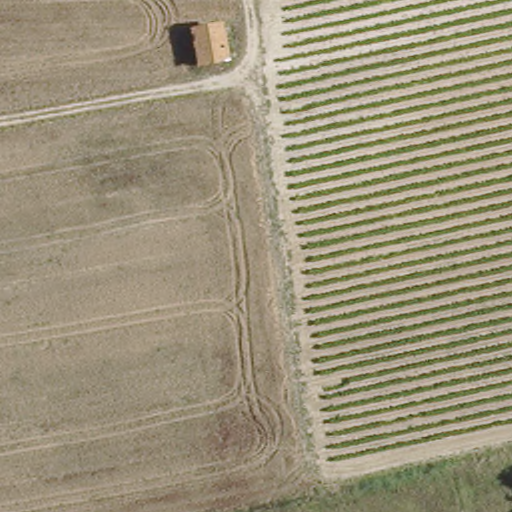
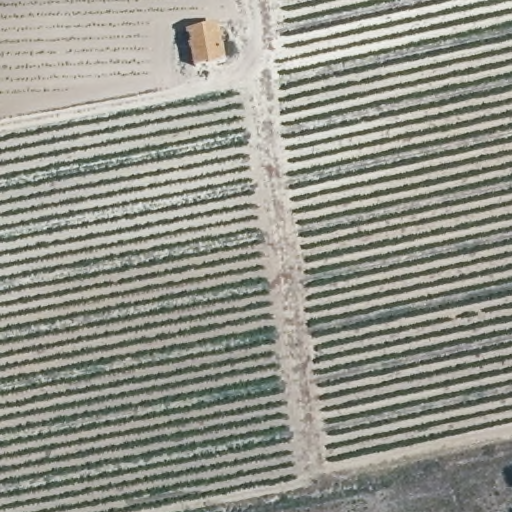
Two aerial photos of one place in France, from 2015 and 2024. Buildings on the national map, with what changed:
unchanged [(192,22),(218,21),(220,47),(195,49),(192,22)]

